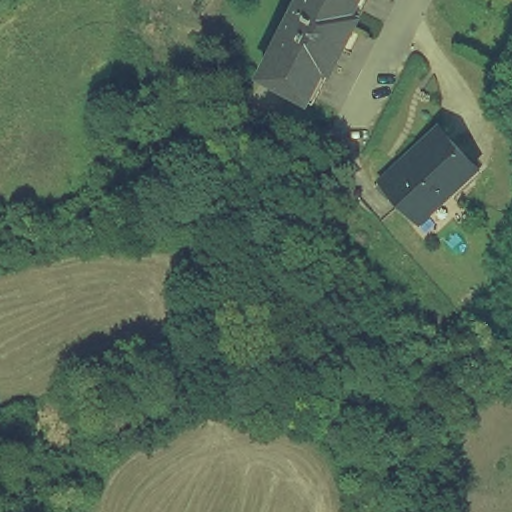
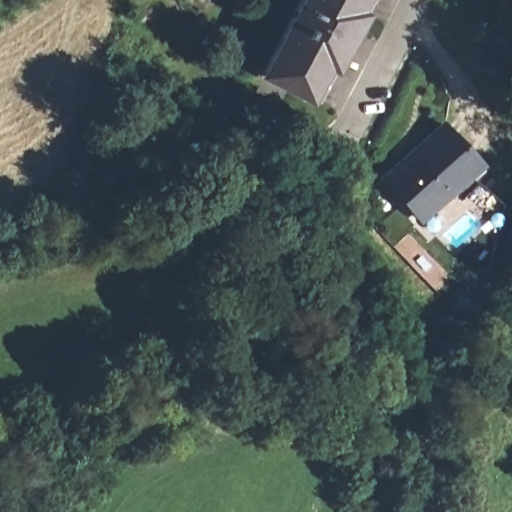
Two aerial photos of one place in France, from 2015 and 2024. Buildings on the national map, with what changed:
unchanged [(315,103),(309,100),(309,102),(262,77),(299,6),(302,0),(370,0),(334,67),(315,103)]
unchanged [(384,181),(444,124),(483,164),(460,187),(452,194),(422,222),(399,197),(384,181)]

